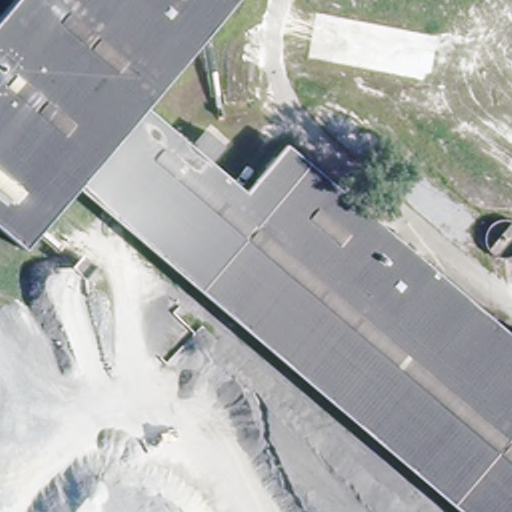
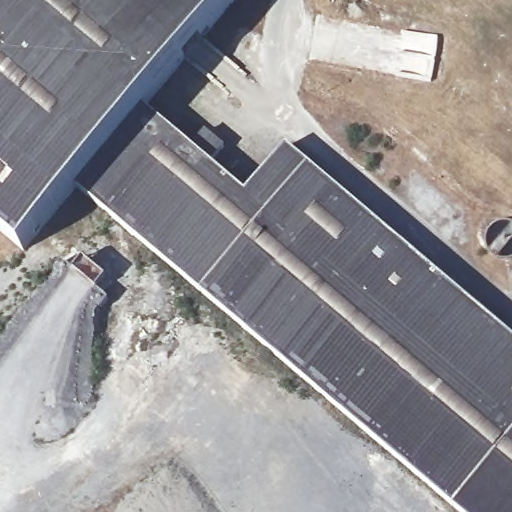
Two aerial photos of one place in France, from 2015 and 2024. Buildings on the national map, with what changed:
unchanged [(231,0),(141,109),(71,193),(21,251),(0,233),(0,12),(10,0),(231,0)]
unchanged [(278,144),(357,210),(435,276),(512,340),(512,512),(452,512),(71,193),(141,109),(239,191),(278,144)]

